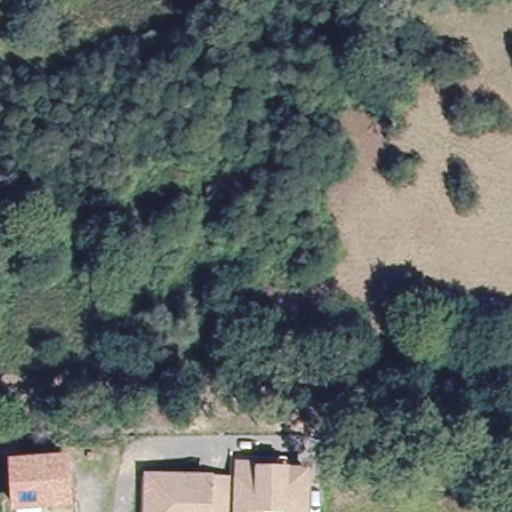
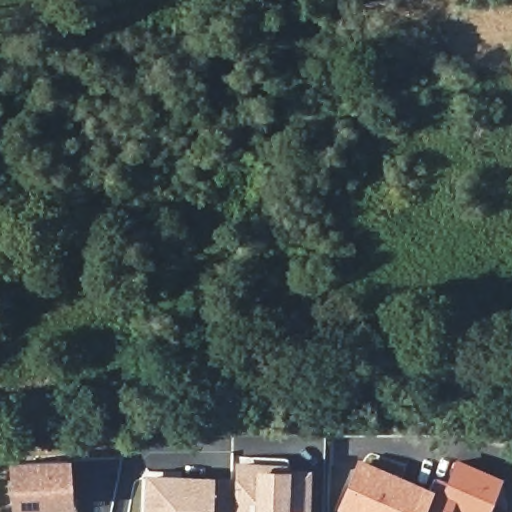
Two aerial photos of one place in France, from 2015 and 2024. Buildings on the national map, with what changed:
unchanged [(70,456),(74,508),(12,511),(10,459),(70,456)]
new [(360,456),(429,487),(420,512),(341,512),(338,511),(360,456)]
new [(457,456),(502,475),(489,512),(457,512),(451,510),(450,512),(420,512),(429,487),(433,475),(447,481),(457,456)]
unchanged [(236,459),(287,461),(288,467),(310,469),(308,512),(144,512),(145,472),(235,477),(236,459)]

